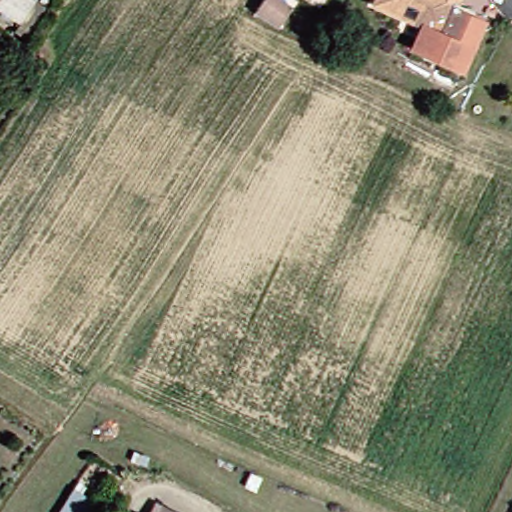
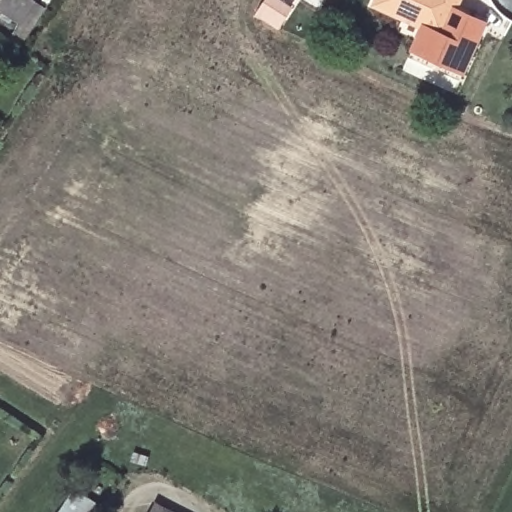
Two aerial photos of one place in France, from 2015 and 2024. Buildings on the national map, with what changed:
unchanged [(29,37),(0,20),(0,0),(33,0),(46,8),(29,37)]
unchanged [(258,0),(268,0),(280,7),(267,24),(249,15),(258,0)]
unchanged [(440,36),(414,24),(371,3),(372,0),(456,0),(452,7),(440,36)]
unchanged [(440,36),(452,7),(483,19),(461,70),(407,47),(414,24),(440,36)]
unchanged [(97,501),(91,512),(58,512),(72,487),(97,501)]

